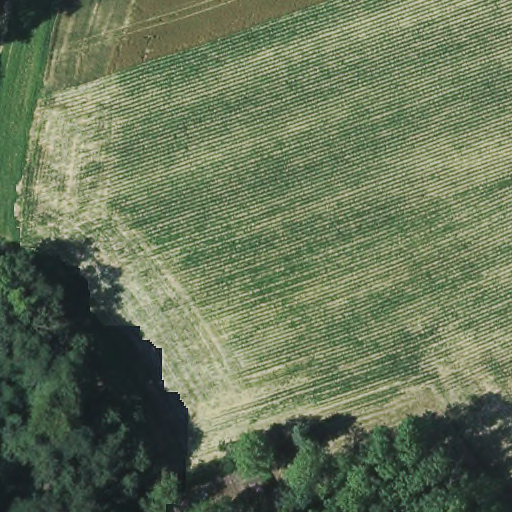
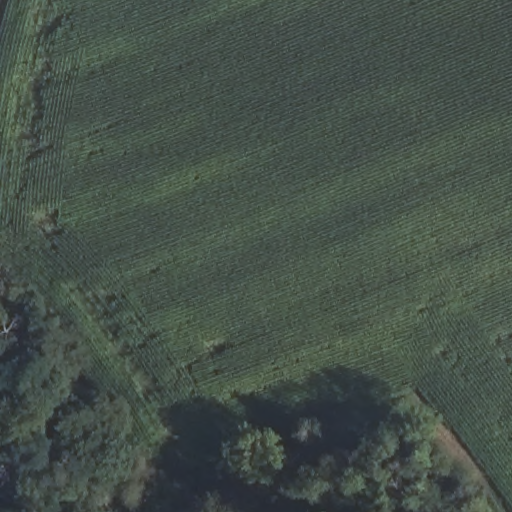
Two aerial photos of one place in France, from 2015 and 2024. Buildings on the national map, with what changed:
unchanged [(212,512),(189,512),(181,496),(241,468),(253,492),(212,512)]

